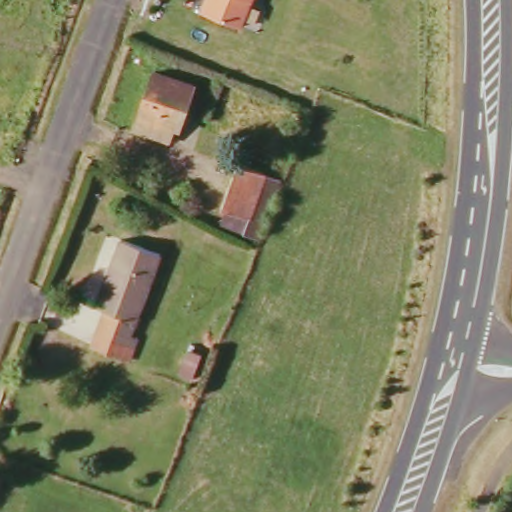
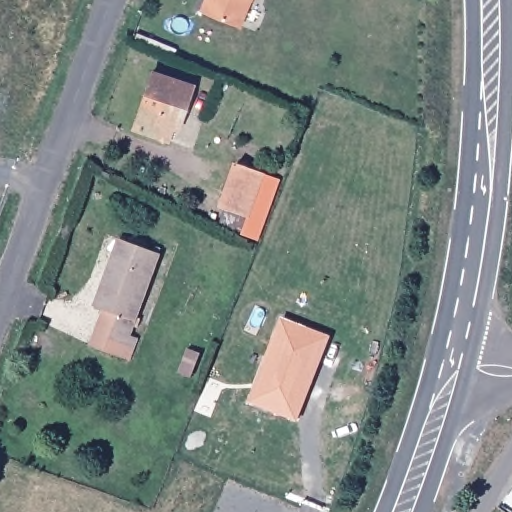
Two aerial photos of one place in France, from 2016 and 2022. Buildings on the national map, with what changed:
unchanged [(199,13),(204,0),(250,0),(237,30),(199,13)]
unchanged [(190,84),(168,141),(131,125),(153,69),(190,84)]
unchanged [(229,202),(220,198),(237,156),(280,173),(257,235),(222,219),(229,202)]
unchanged [(137,324),(133,332),(128,330),(125,338),(133,342),(125,361),(87,346),(100,313),(89,309),(105,266),(113,269),(125,242),(160,257),(132,323),(137,324)]
new [(282,316),(328,335),(316,364),(310,361),(299,387),(305,390),(293,418),(247,399),(282,316)]
unchanged [(183,346),(195,352),(185,374),(173,368),(183,346)]

